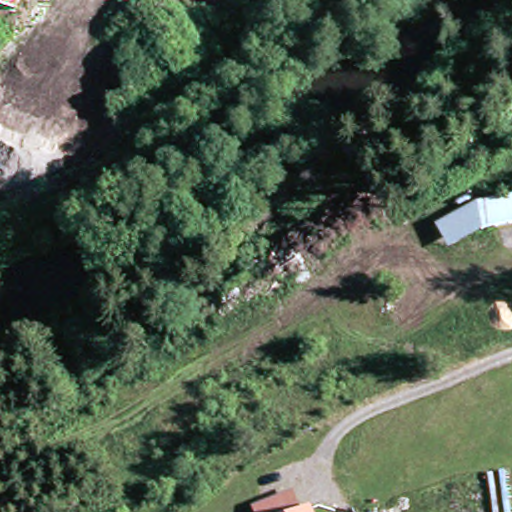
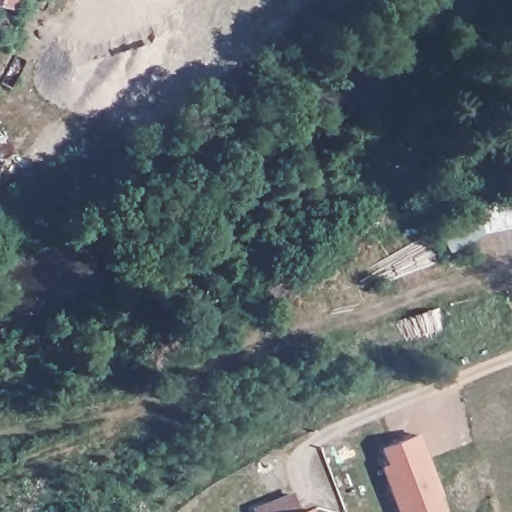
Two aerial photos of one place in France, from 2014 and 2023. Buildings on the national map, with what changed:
unchanged [(467,202),(502,195),(512,193),(512,223),(507,223),(475,230),(467,202)]
new [(446,511),(444,512),(400,512),(380,465),(387,462),(380,449),(417,433),(442,493),(439,494),(446,511)]
unchanged [(290,497),(295,512),(255,512),(255,511),(290,497)]

